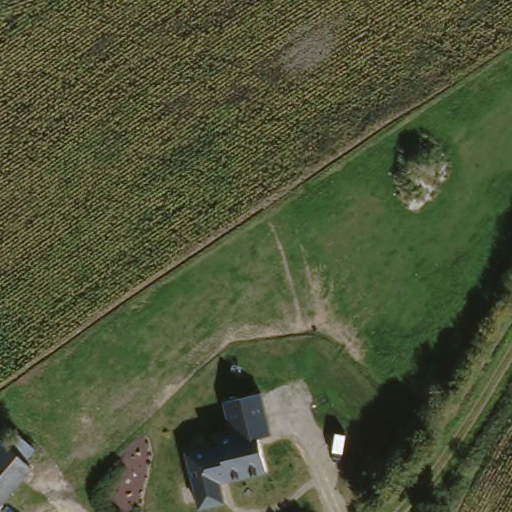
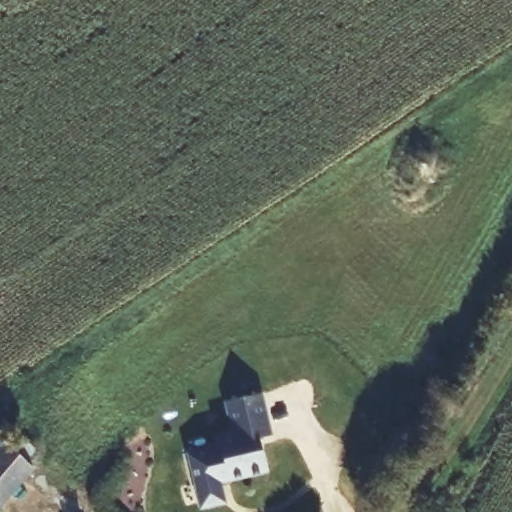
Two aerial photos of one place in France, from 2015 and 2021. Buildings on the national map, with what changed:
unchanged [(272,439),(262,441),(268,480),(227,488),(228,512),(196,512),(185,453),(231,443),(225,405),(266,397),(272,439)]
unchanged [(0,505),(0,439),(32,468),(0,505)]

